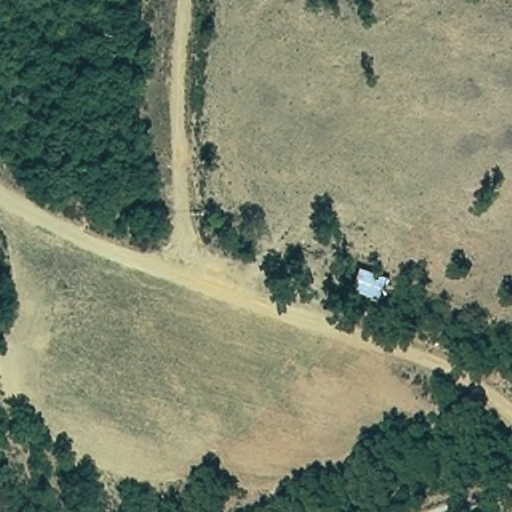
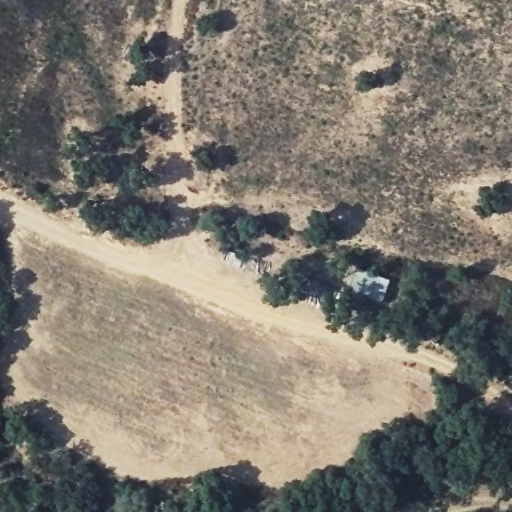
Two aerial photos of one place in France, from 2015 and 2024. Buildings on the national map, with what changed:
unchanged [(358,267),(392,278),(383,303),(350,292),(358,267)]

